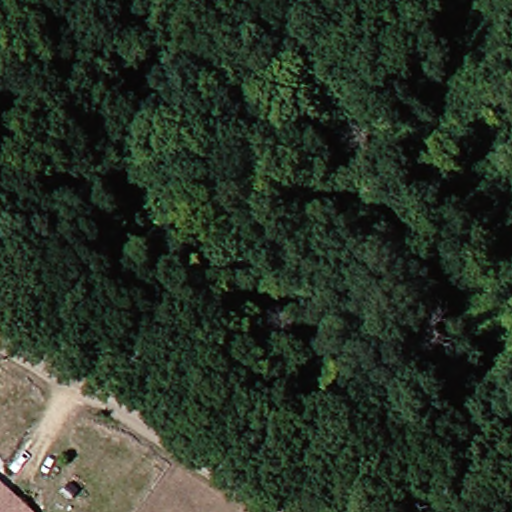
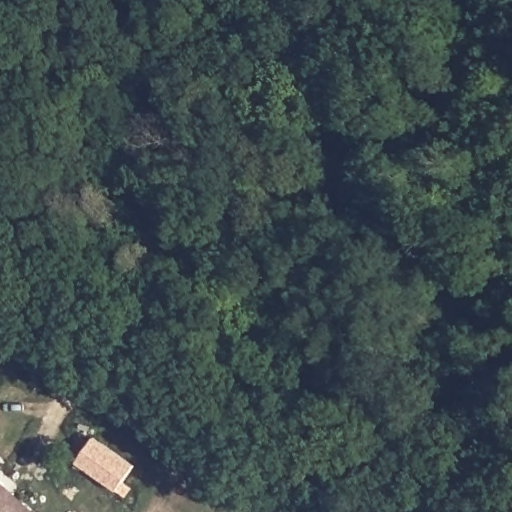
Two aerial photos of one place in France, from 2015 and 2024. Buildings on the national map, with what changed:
new [(77,463),(95,437),(135,464),(117,491),(77,463)]
unchanged [(3,481),(36,511),(35,512),(0,512),(0,478),(3,481)]

